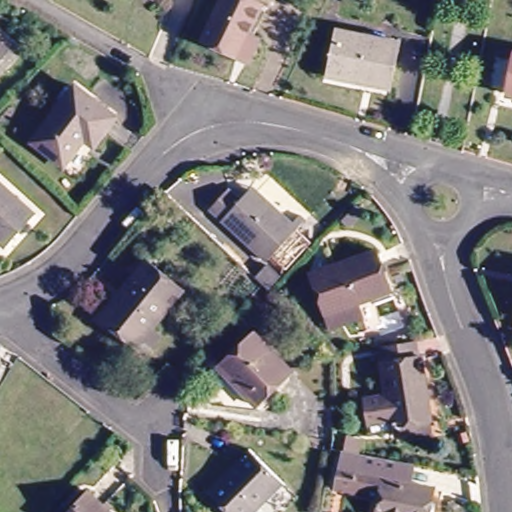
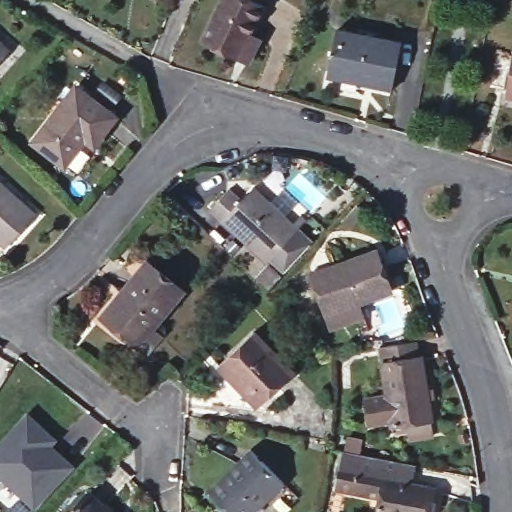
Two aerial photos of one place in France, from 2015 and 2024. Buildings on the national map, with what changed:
unchanged [(155,0),(150,5),(145,0),(155,0)]
unchanged [(246,61),(232,55),(216,46),(200,38),(220,0),(258,0),(260,1),(245,30),(259,37),(246,61)]
unchanged [(330,61),(338,25),(400,39),(390,86),(366,81),(328,72),(330,61)]
unchanged [(0,53),(0,44),(5,48),(0,53)]
unchanged [(510,89),(512,81),(512,89),(510,89)]
unchanged [(86,134),(64,158),(35,134),(81,85),(115,115),(92,139),(86,134)]
unchanged [(0,178),(38,215),(8,246),(0,238),(0,178)]
unchanged [(268,265),(207,206),(226,186),(239,199),(255,184),(262,191),(302,231),(268,265)]
unchanged [(329,315),(326,300),(320,260),(380,249),(387,289),(359,294),(362,310),(329,315)]
unchanged [(105,317),(150,258),(187,288),(140,346),(105,317)]
unchanged [(265,401),(224,362),(252,334),(293,371),(265,401)]
unchanged [(420,443),(417,426),(387,431),(386,425),(367,427),(363,405),(381,402),(373,350),(413,343),(416,357),(426,355),(436,423),(440,440),(420,443)]
new [(50,449),(56,456),(71,470),(31,510),(0,478),(0,446),(29,417),(55,443),(50,449)]
unchanged [(209,486),(250,445),(286,480),(253,512),(234,512),(209,486)]
unchanged [(377,482),(355,478),(358,457),(345,455),(347,445),(362,447),(360,457),(414,467),(411,490),(431,493),(429,512),(372,512),(377,482)]
unchanged [(94,493),(113,512),(76,512),(94,493)]

